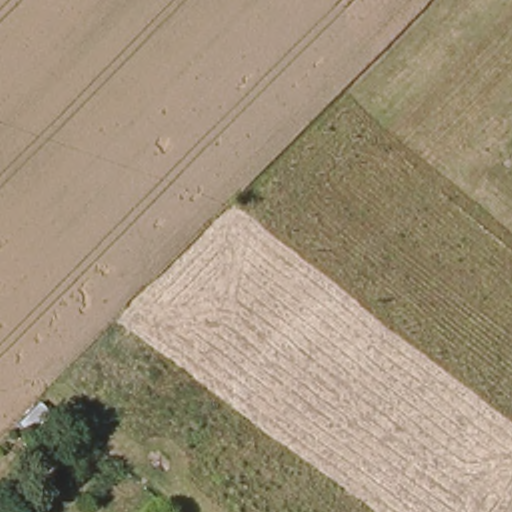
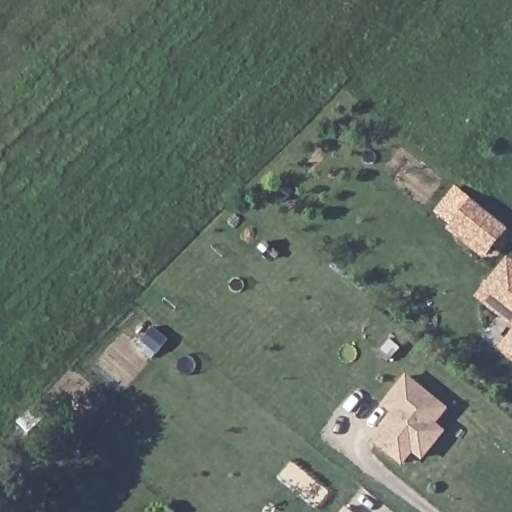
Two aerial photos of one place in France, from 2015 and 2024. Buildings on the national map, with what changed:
new [(485,259),(449,229),(473,198),(510,229),(485,259)]
new [(509,257),(512,259),(512,325),(477,297),(509,257)]
new [(512,333),(512,356),(501,347),(512,333)]
new [(437,424),(447,432),(423,461),(415,453),(403,466),(375,442),(384,429),(381,426),(392,412),(383,404),(408,374),(449,408),(437,424)]

